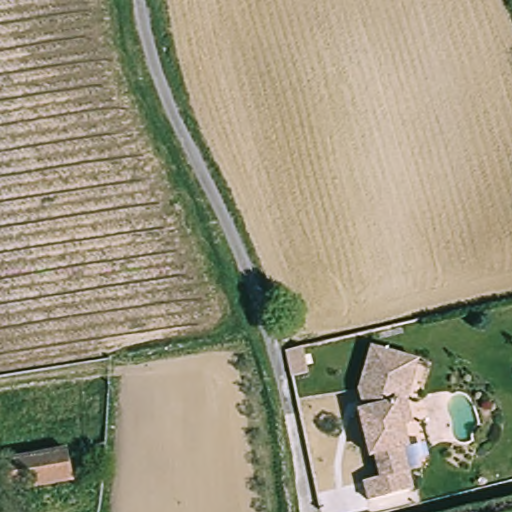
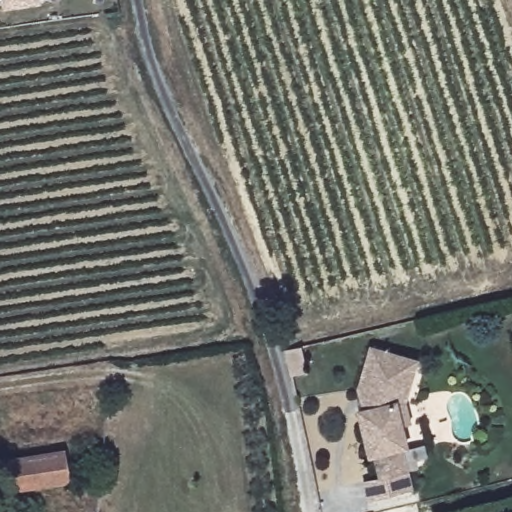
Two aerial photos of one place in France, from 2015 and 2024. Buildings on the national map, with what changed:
new [(2,0),(39,0),(39,2),(3,8),(2,0)]
unchanged [(406,448),(418,489),(374,500),(369,482),(386,475),(379,454),(375,456),(361,412),(367,408),(362,389),(373,348),(410,358),(419,361),(408,402),(414,421),(405,423),(412,445),(406,448)]
unchanged [(301,378),(296,354),(312,349),(317,375),(301,378)]
unchanged [(3,459),(63,447),(70,476),(10,488),(3,459)]

